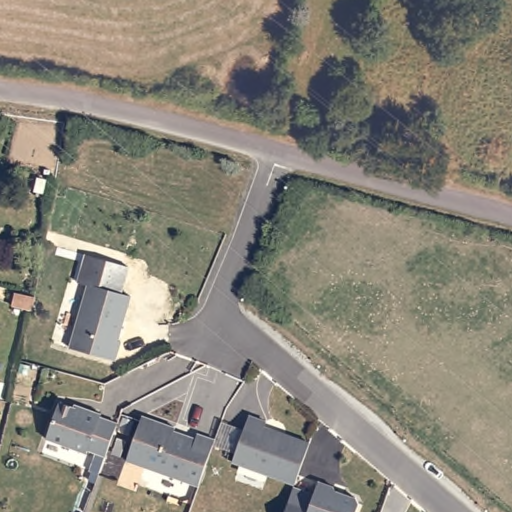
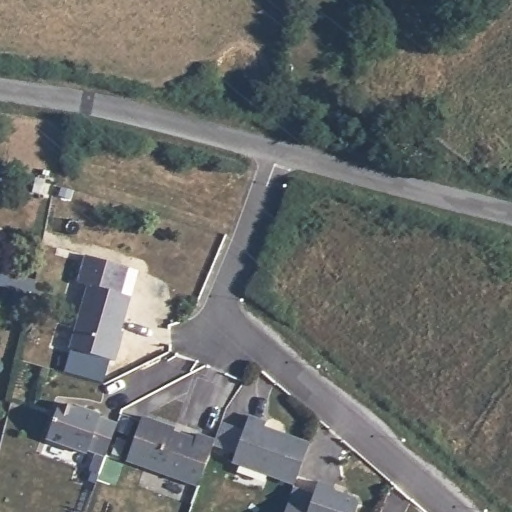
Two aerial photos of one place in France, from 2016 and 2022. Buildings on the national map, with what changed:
unchanged [(123,341),(117,361),(72,347),(90,284),(80,281),(87,255),(131,267),(123,293),(132,296),(120,341),(123,341)]
unchanged [(97,472),(97,473),(87,470),(94,452),(86,449),(85,452),(45,437),(58,401),(82,410),(83,407),(99,413),(98,416),(116,422),(97,472)]
unchanged [(197,488),(184,483),(126,462),(142,418),(175,430),(173,433),(195,441),(197,436),(203,438),(214,442),(197,488)]
unchanged [(234,465),(251,418),(267,425),(266,430),(311,446),(296,487),(234,465)]
unchanged [(334,490),(336,494),(356,502),(358,507),(357,512),(287,512),(290,504),(295,490),(314,497),(318,485),(334,490)]

